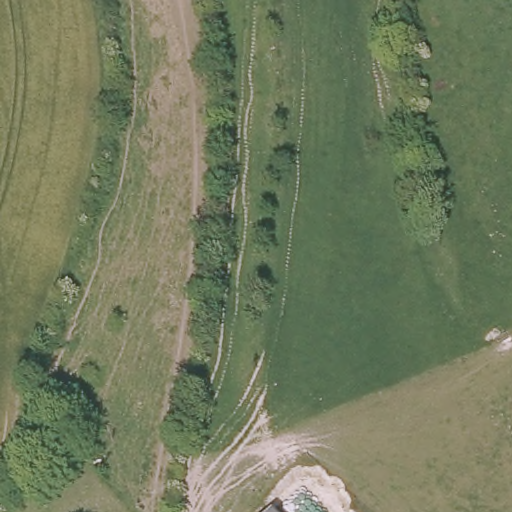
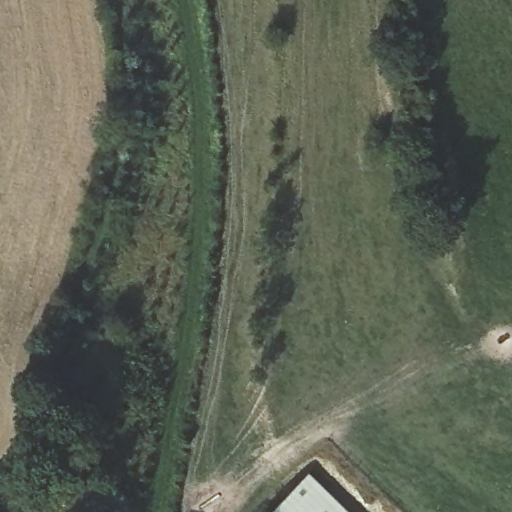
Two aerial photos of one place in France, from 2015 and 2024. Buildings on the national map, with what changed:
new [(348,512),(276,512),(274,510),(310,475),(348,512)]
unchanged [(272,512),(274,510),(276,512),(272,512)]

